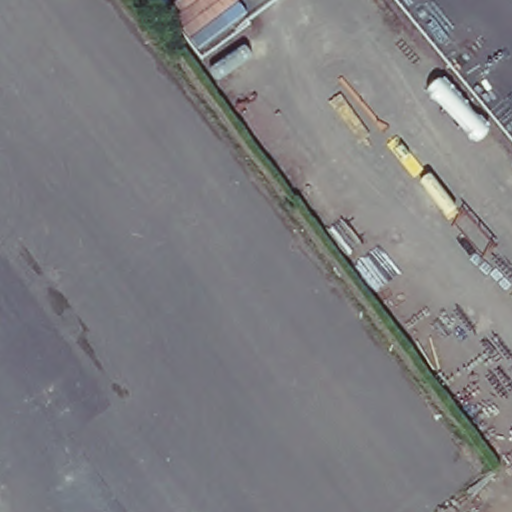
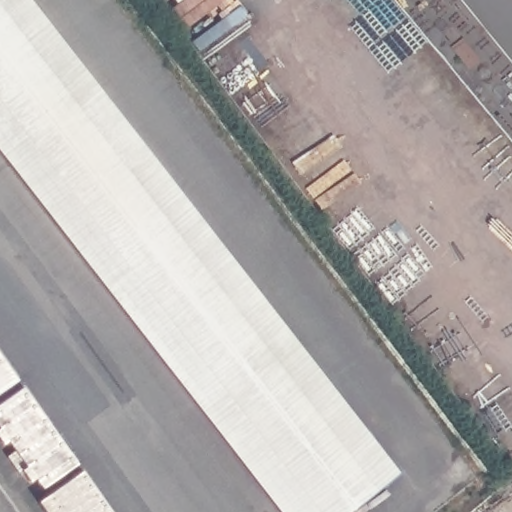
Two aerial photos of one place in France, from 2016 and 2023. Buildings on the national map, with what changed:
new [(32,0),(398,471),(342,512),(264,512),(0,168),(0,0),(32,0)]

